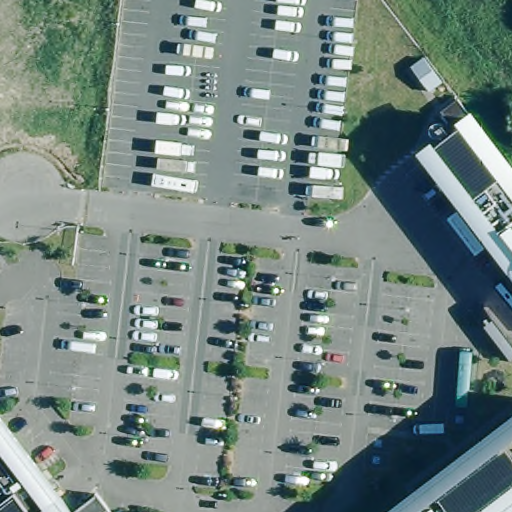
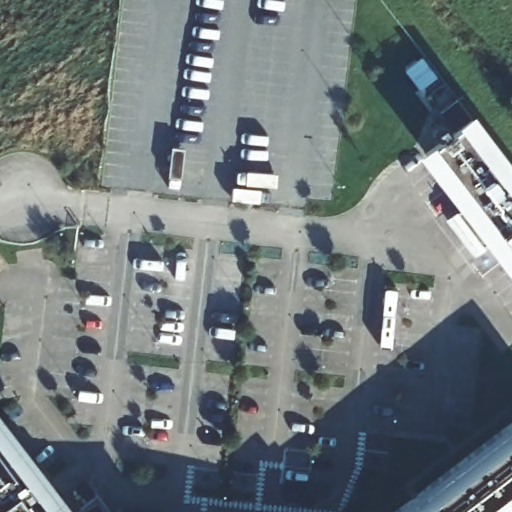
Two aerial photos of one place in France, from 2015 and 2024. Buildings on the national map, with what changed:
unchanged [(512,266),(498,248),(485,258),(460,224),(472,215),(431,161),(460,139),(446,120),(463,107),(512,171),(512,266)]
unchanged [(80,512),(57,512),(47,499),(31,512),(20,512),(5,493),(0,497),(0,416),(80,512)]
unchanged [(512,502),(499,512),(389,512),(512,418),(512,502)]
unchanged [(5,493),(20,512),(0,512),(0,497),(5,493)]
unchanged [(57,512),(31,512),(47,499),(57,512)]
unchanged [(96,512),(94,512),(95,511),(96,512)]

